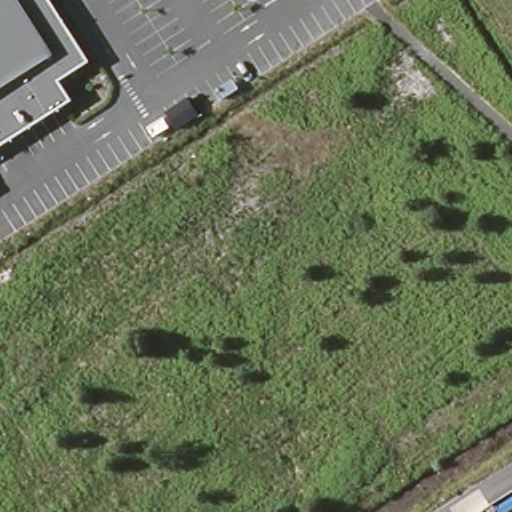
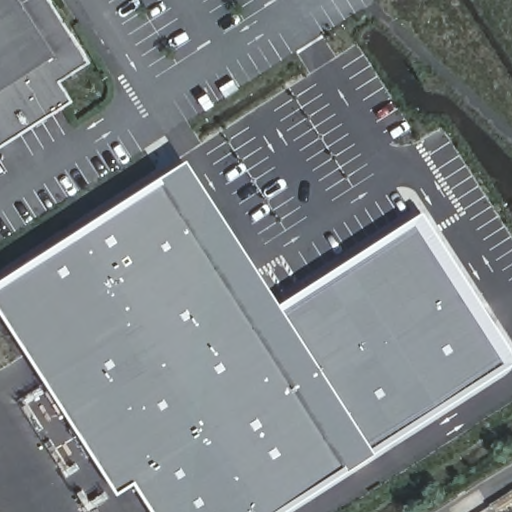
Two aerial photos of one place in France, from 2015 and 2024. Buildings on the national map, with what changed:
unchanged [(90,62),(59,81),(70,100),(0,146),(0,0),(50,0),(90,62)]
new [(0,279),(187,158),(279,303),(423,211),(512,349),(512,365),(374,452),(281,512),(154,512),(134,481),(117,491),(0,310),(0,279)]

